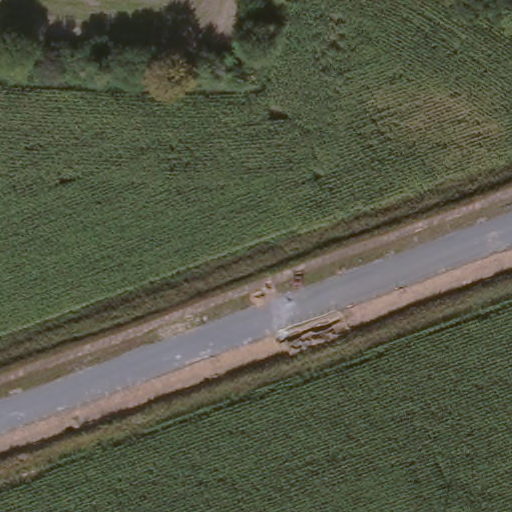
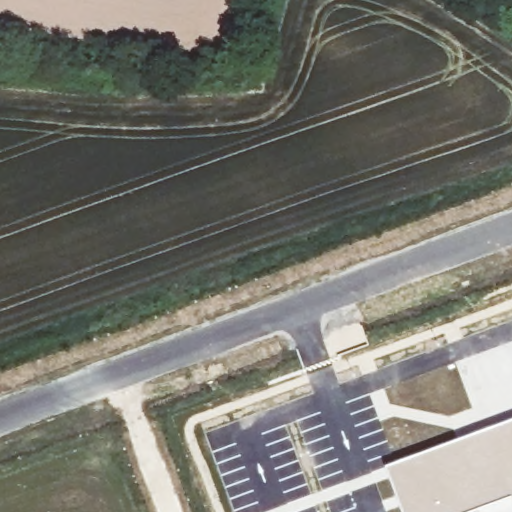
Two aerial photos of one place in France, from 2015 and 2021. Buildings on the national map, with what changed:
new [(512,406),(512,512),(396,512),(377,459),(512,406)]

